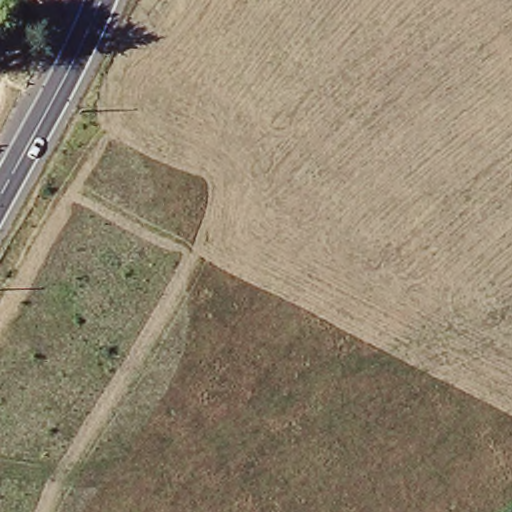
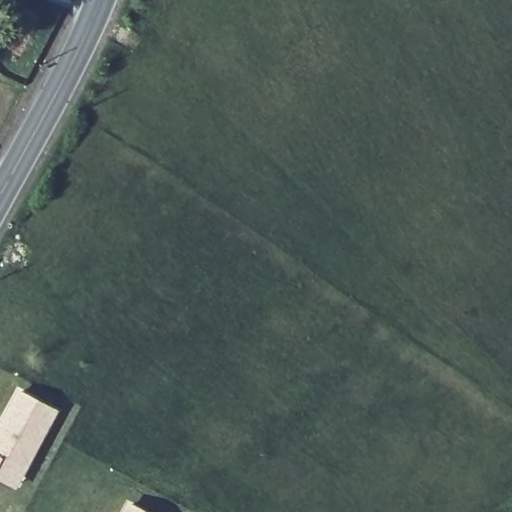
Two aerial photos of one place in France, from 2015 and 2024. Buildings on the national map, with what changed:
new [(23,472),(0,460),(0,429),(20,392),(56,411),(23,472)]
new [(23,472),(16,486),(0,477),(0,460),(23,472)]
new [(130,505),(143,512),(126,512),(130,505)]

